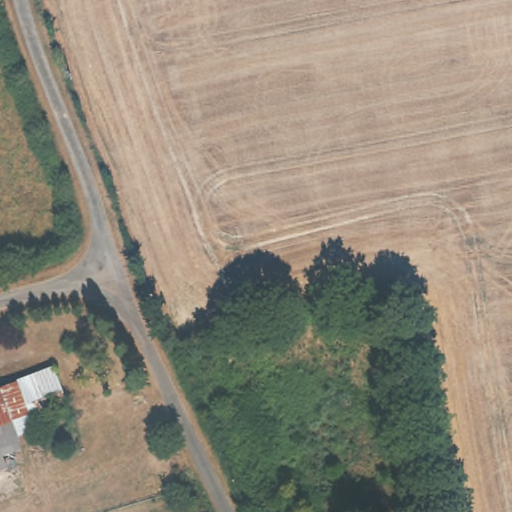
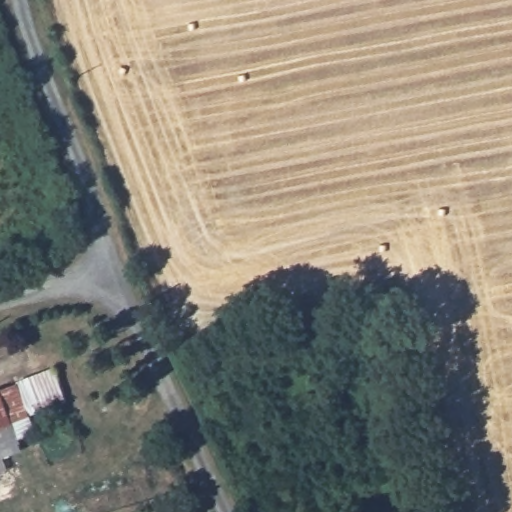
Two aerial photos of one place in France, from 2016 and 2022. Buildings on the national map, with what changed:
unchanged [(0,424),(0,387),(57,366),(70,399),(35,411),(0,424)]
unchanged [(22,435),(25,449),(6,455),(0,437),(0,424),(35,411),(39,428),(22,435)]
unchanged [(10,465),(0,469),(0,437),(6,455),(10,465)]

